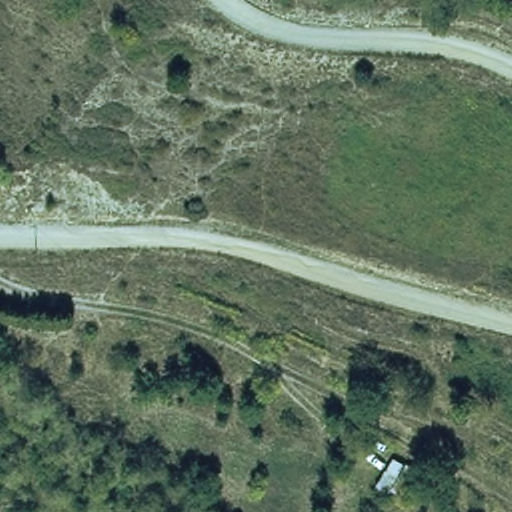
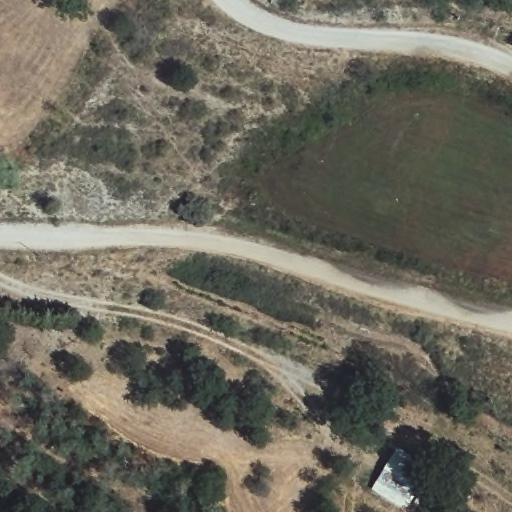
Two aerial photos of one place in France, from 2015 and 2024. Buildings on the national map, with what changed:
unchanged [(395,454),(410,469),(395,496),(375,483),(395,454)]

